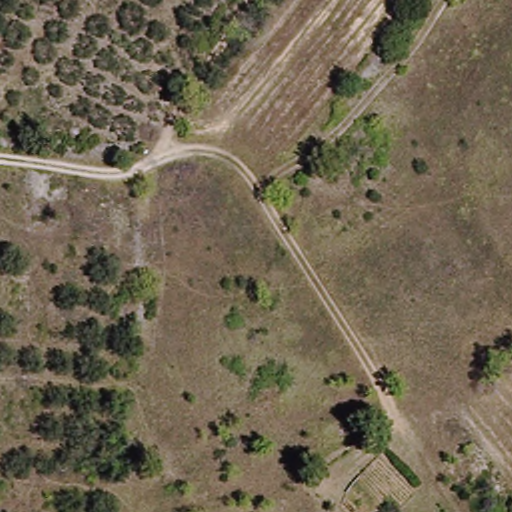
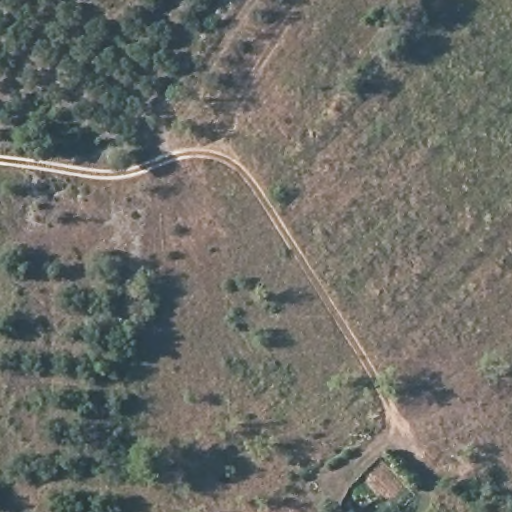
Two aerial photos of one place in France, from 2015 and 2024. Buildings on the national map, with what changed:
[]

